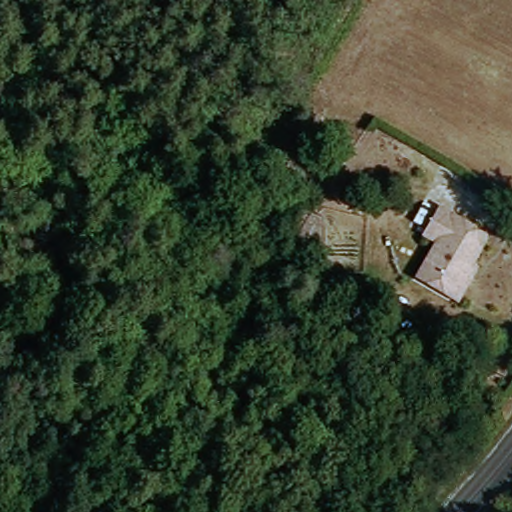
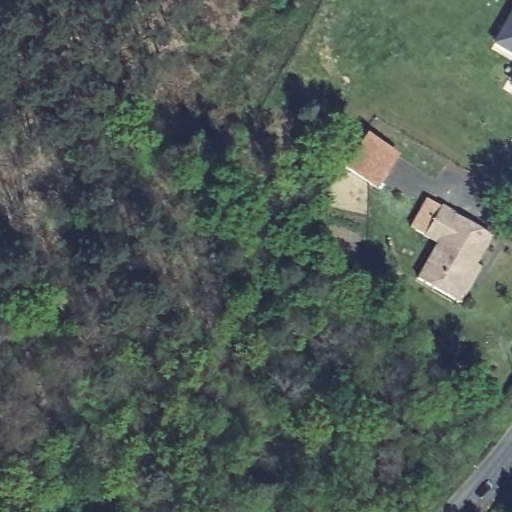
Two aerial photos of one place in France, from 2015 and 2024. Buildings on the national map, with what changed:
new [(512,17),(512,53),(497,45),(512,17)]
new [(367,134),(398,154),(378,186),(346,166),(367,134)]
unchanged [(462,302),(452,297),(421,277),(438,242),(423,236),(438,205),(492,231),(477,258),(487,265),(462,302)]

